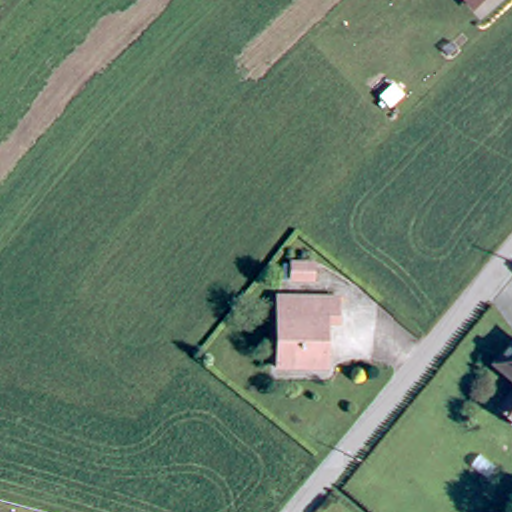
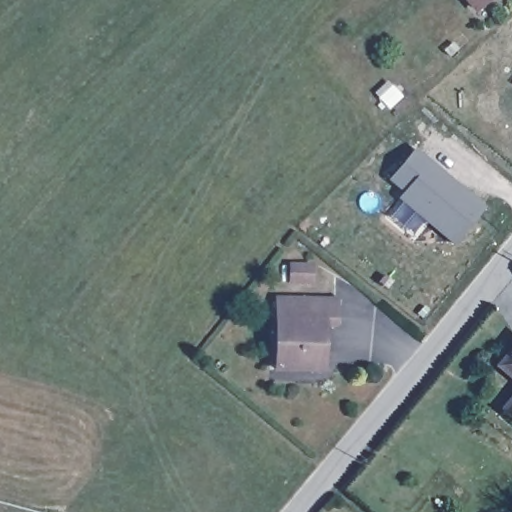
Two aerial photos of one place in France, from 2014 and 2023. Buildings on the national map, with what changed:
unchanged [(483,0),(496,0),(489,7),(483,0)]
new [(402,194),(386,181),(414,149),(484,209),(453,247),(396,200),(402,194)]
unchanged [(292,260),(313,259),(313,277),(291,276),(292,260)]
unchanged [(286,296),(343,297),(342,322),(329,322),(328,368),(282,367),(286,296)]
unchanged [(505,365),(512,357),(512,371),(505,365)]
unchanged [(509,409),(512,405),(512,412),(509,409)]

